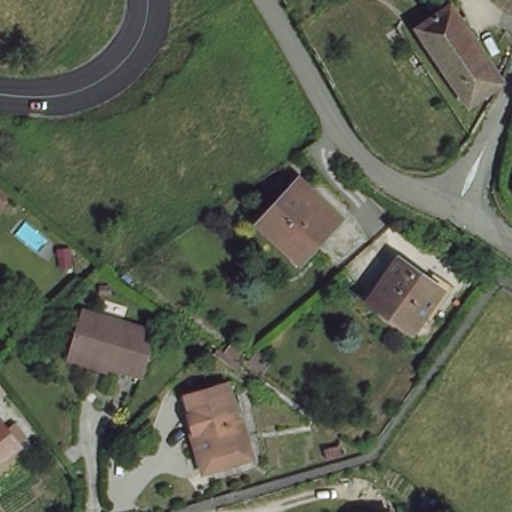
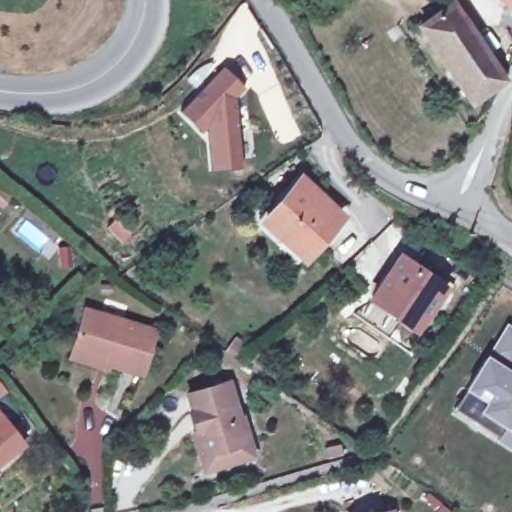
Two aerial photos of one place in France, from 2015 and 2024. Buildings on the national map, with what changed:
unchanged [(496,0),(512,0),(512,12),(495,1),(496,0)]
unchanged [(422,30),(457,6),(507,83),(472,108),(422,30)]
new [(222,66),(245,87),(235,100),(241,167),(210,171),(207,140),(205,130),(200,133),(178,112),(222,66)]
unchanged [(340,217),(305,254),(281,232),(276,238),(262,223),(305,180),(340,217)]
unchanged [(445,284),(422,321),(397,306),(395,311),(373,298),(401,255),(445,284)]
unchanged [(68,360),(71,350),(82,310),(155,331),(140,377),(105,368),(104,372),(68,360)]
new [(500,372),(506,363),(487,351),(502,327),(512,334),(512,453),(491,440),(492,438),(448,409),(461,389),(480,359),(500,372)]
unchanged [(195,453),(186,427),(192,425),(182,391),(226,380),(250,453),(218,463),(200,468),(195,453)]
unchanged [(0,391),(0,383),(4,388),(0,391)]
unchanged [(0,420),(17,440),(0,453),(0,420)]

